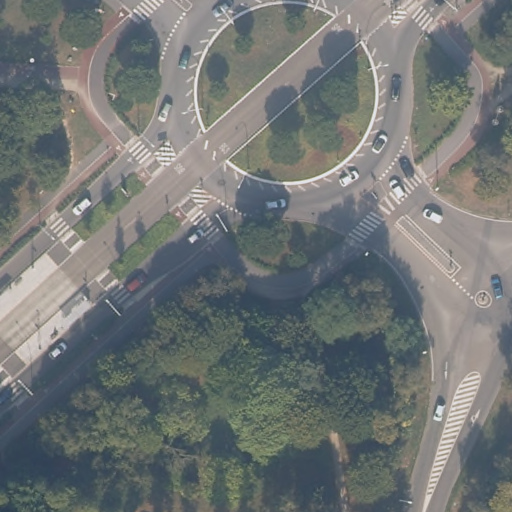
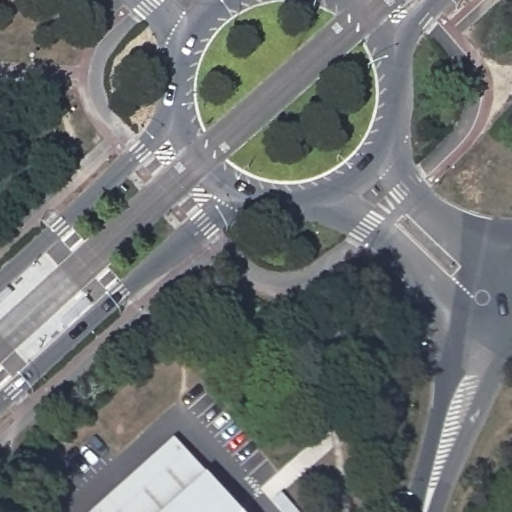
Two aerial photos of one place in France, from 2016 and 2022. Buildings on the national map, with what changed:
new [(208,473),(243,512),(91,512),(175,437),(208,473)]

